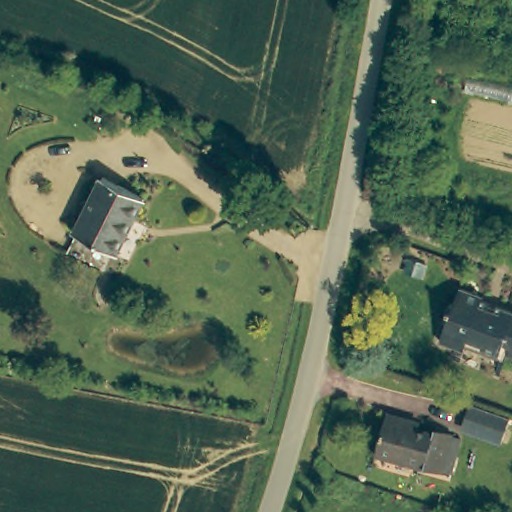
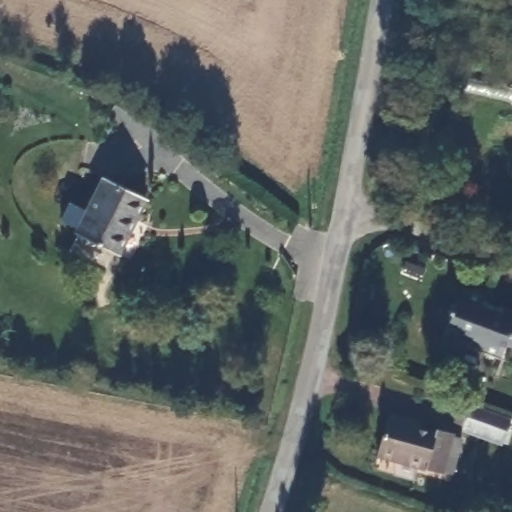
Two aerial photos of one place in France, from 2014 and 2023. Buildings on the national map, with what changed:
unchanged [(124,246),(115,264),(69,242),(77,223),(75,222),(102,166),(144,186),(134,207),(117,243),(124,246)]
unchanged [(479,295),(512,308),(512,351),(500,346),(499,350),(483,343),(481,348),(465,342),(462,348),(438,337),(446,317),(442,315),(450,295),(455,297),(460,284),(481,291),(479,295)]
unchanged [(495,402),(512,409),(512,437),(485,427),(495,402)]
unchanged [(444,474),(435,471),(434,473),(370,452),(383,411),(402,418),(415,422),(413,428),(429,433),(430,428),(447,434),(446,436),(455,439),(444,474)]

